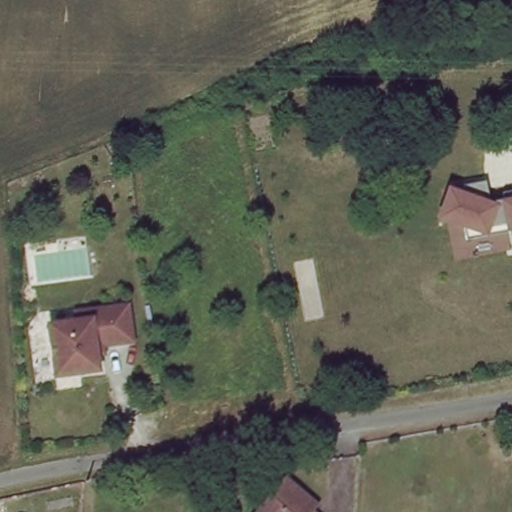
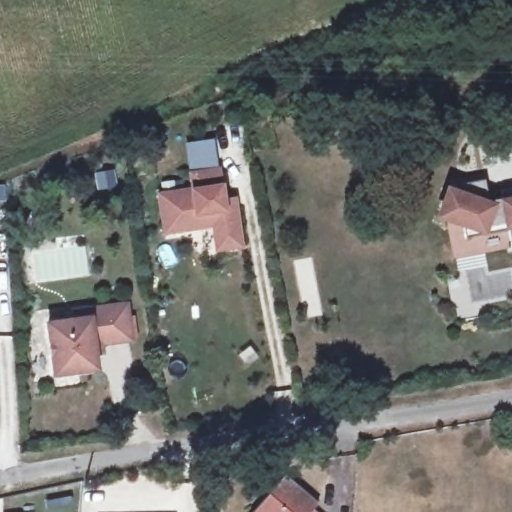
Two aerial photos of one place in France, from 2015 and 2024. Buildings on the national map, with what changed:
new [(244,248),(217,252),(213,228),(164,234),(158,192),(192,187),(189,171),(220,166),(224,182),(226,198),(237,196),(244,248)]
unchanged [(496,199),(495,186),(512,183),(512,243),(502,245),(501,229),(461,235),(459,224),(448,218),(436,218),(440,193),(450,189),(449,182),(482,174),(485,200),(496,199)]
unchanged [(130,338),(99,341),(100,350),(93,352),(95,367),(53,373),(45,322),(75,319),(73,310),(125,303),(130,338)]
unchanged [(285,479),(318,505),(313,512),(255,512),(285,479)]

